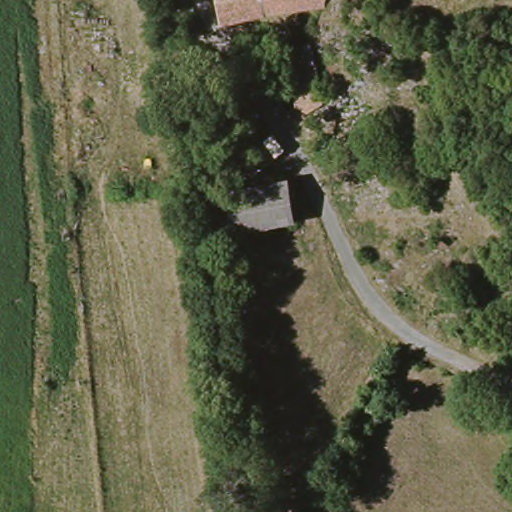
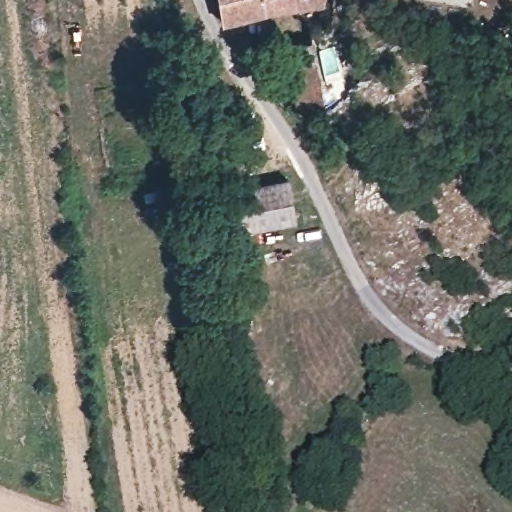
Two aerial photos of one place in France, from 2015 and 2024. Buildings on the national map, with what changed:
unchanged [(275,14),(225,24),(219,0),(272,0),(275,14)]
unchanged [(282,13),(275,14),(272,0),(331,0),(330,3),(282,13)]
unchanged [(312,44),(327,101),(310,110),(300,104),(285,49),(288,48),(312,44)]
unchanged [(227,188),(292,181),(298,220),(233,228),(227,188)]

